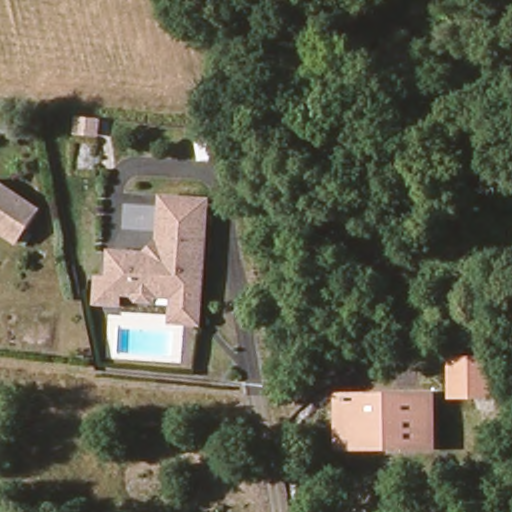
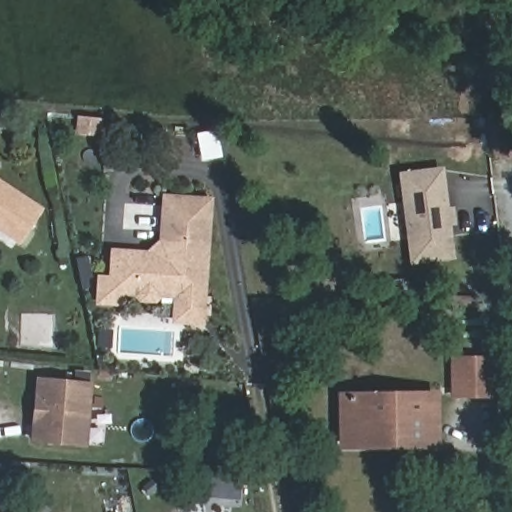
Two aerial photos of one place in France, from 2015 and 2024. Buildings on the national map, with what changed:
new [(458,223),(452,224),(456,257),(416,262),(406,175),(445,170),(450,211),(457,210),(458,223)]
unchanged [(13,245),(0,236),(0,189),(35,212),(13,245)]
unchanged [(200,300),(159,296),(155,301),(138,300),(135,295),(111,293),(110,300),(106,300),(106,305),(99,303),(100,280),(111,281),(114,255),(155,258),(161,252),(162,234),(165,205),(165,197),(208,200),(200,300)]
unchanged [(450,400),(450,355),(497,354),(497,398),(450,400)]
new [(30,443),(35,378),(94,382),(88,447),(30,443)]
unchanged [(431,446),(396,446),(396,439),(340,438),(341,397),(432,398),(431,446)]
new [(240,500),(220,499),(201,497),(202,478),(222,480),(241,481),(240,500)]

